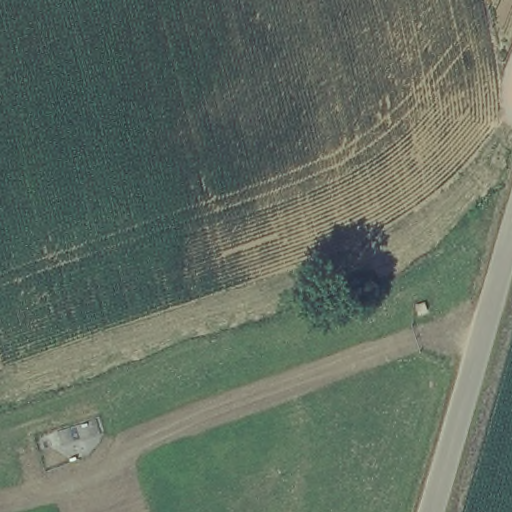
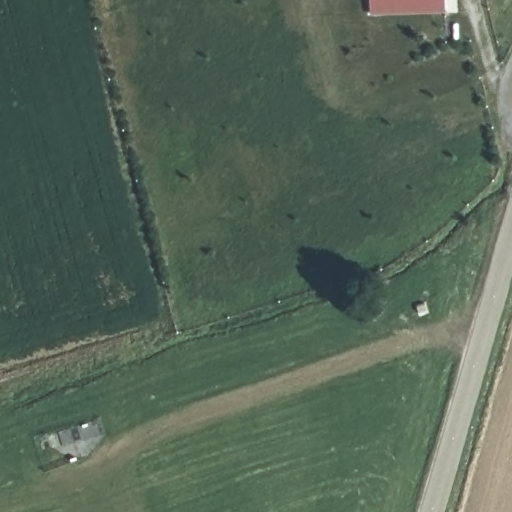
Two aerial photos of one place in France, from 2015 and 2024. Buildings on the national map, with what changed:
new [(444,13),(369,14),(369,0),(444,0),(444,13)]

